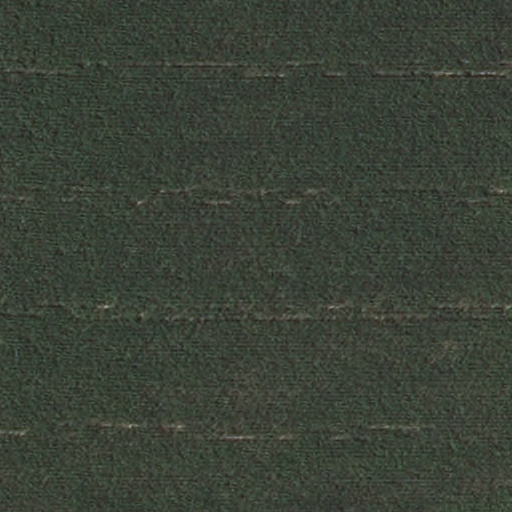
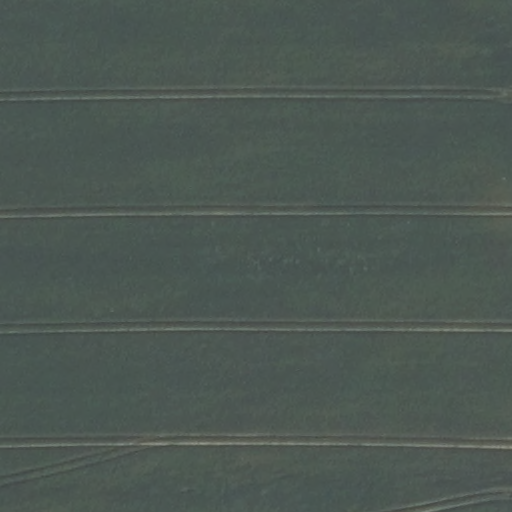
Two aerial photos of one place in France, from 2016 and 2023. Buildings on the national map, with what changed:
[]

